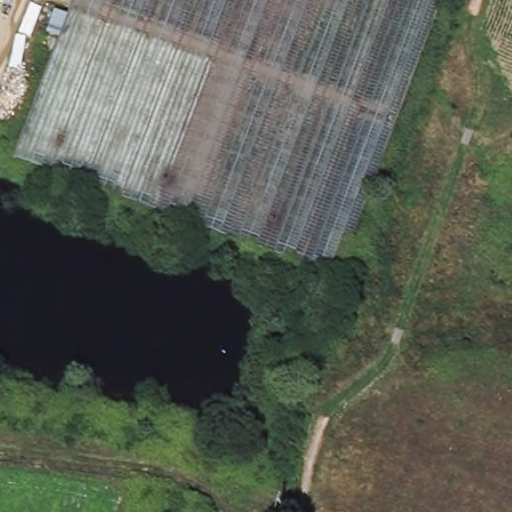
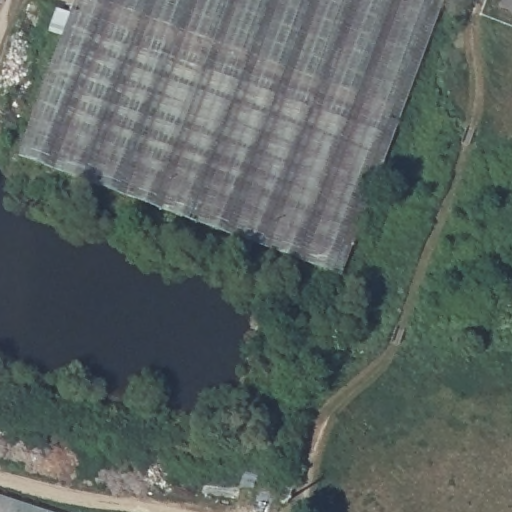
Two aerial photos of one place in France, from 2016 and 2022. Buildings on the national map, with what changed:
unchanged [(16,161),(72,0),(439,0),(343,272),(16,161)]
new [(57,512),(0,512),(0,493),(57,512)]

